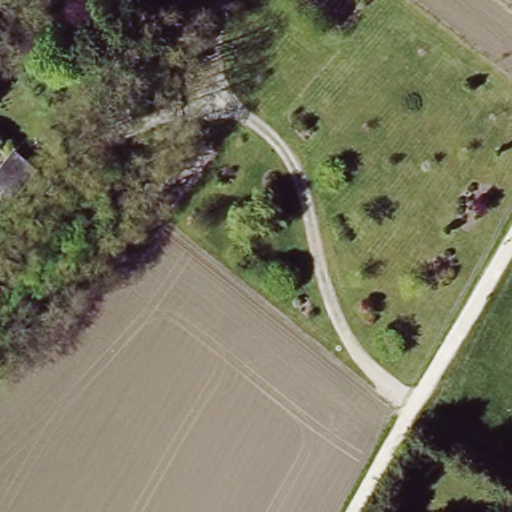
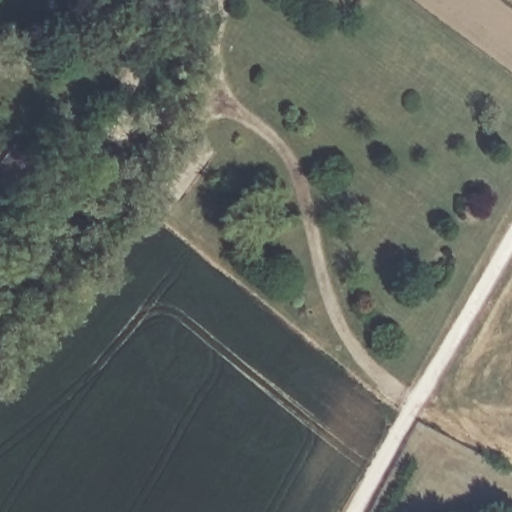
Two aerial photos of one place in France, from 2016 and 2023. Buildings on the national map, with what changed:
unchanged [(40,164),(17,194),(0,180),(0,167),(17,145),(40,164)]

